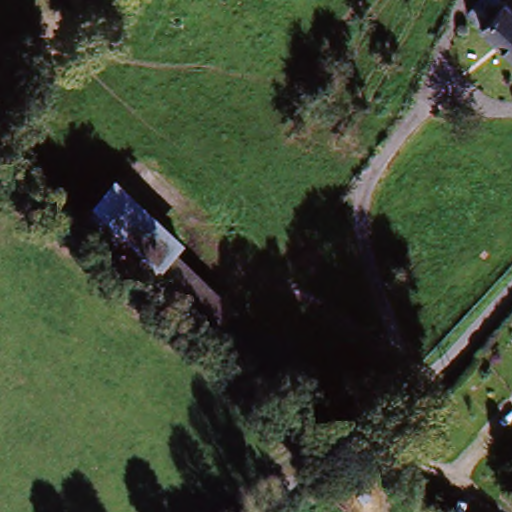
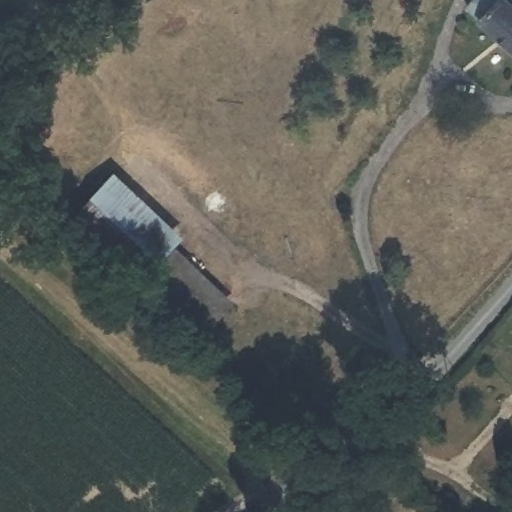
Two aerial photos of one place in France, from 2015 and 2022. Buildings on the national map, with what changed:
unchanged [(490,26),(485,32),(471,17),(489,0),(511,0),(512,1),(512,48),(490,26)]
unchanged [(110,161),(225,263),(197,293),(161,256),(153,260),(85,188),(110,161)]

